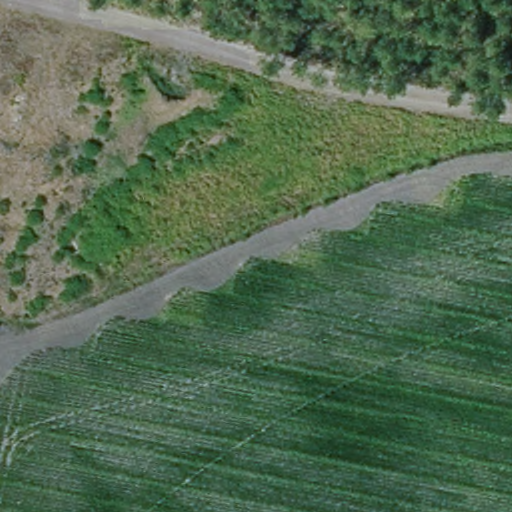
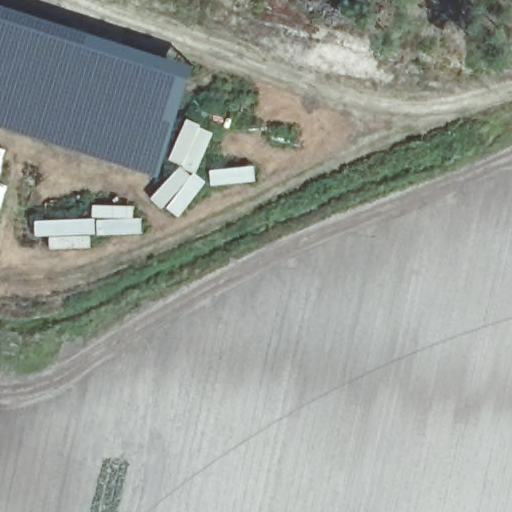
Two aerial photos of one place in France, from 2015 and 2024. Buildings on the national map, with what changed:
new [(194,64),(158,176),(0,126),(0,3),(194,64)]

